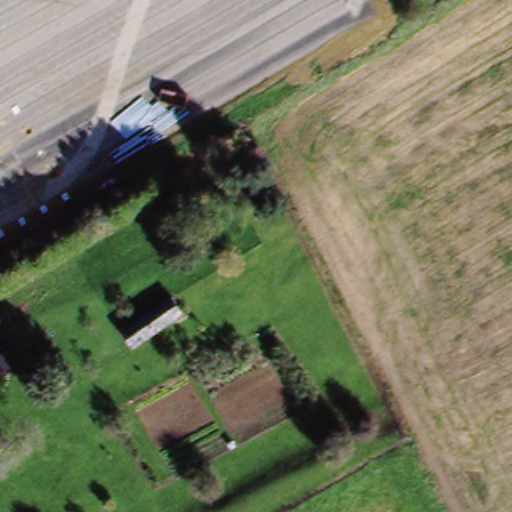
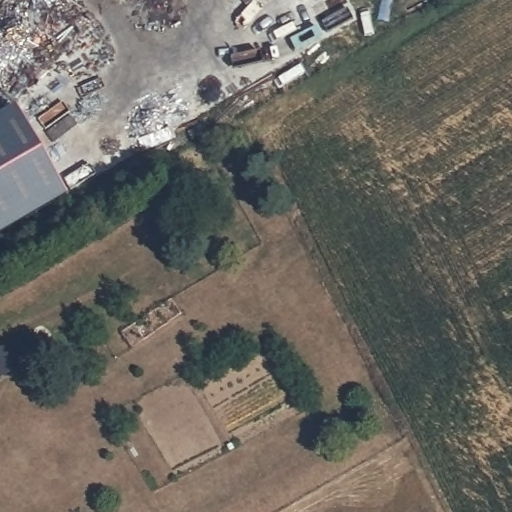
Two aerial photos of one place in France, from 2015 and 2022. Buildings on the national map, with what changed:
new [(13,112),(62,199),(0,234),(0,119),(13,112)]
unchanged [(131,353),(119,335),(175,297),(188,316),(131,353)]

